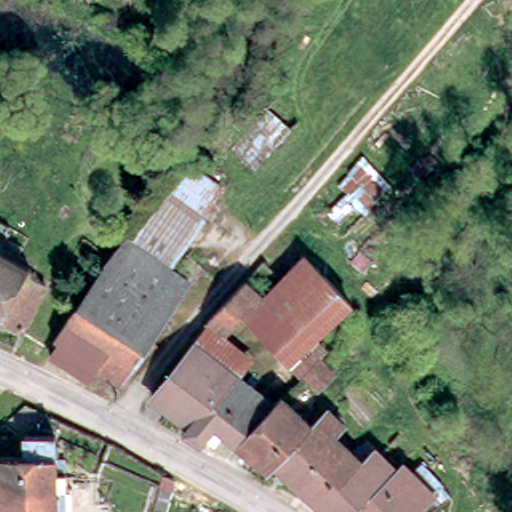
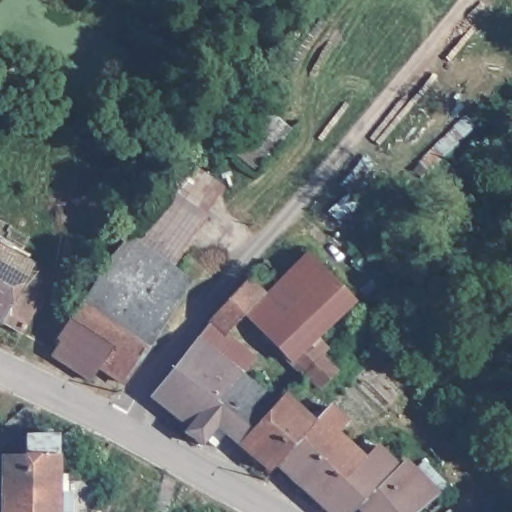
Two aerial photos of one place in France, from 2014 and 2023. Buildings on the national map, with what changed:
unchanged [(189,162),(222,185),(203,212),(170,189),(189,162)]
unchanged [(170,263),(136,240),(170,189),(203,212),(170,263)]
unchanged [(11,234),(2,251),(30,266),(27,274),(22,287),(5,324),(3,328),(0,326),(0,227),(11,234)]
unchanged [(55,351),(57,348),(75,303),(93,279),(104,264),(115,249),(127,234),(136,240),(170,263),(192,278),(125,379),(102,363),(92,377),(55,351)]
unchanged [(262,338),(242,318),(267,290),(300,259),(320,278),(321,279),(276,324),(262,338)]
unchanged [(22,287),(27,274),(47,285),(25,334),(5,324),(22,287)]
unchanged [(321,279),(330,287),(340,298),(348,306),(340,313),(307,345),(306,346),(303,349),(276,324),(321,279)]
unchanged [(242,318),(225,338),(207,324),(245,281),(256,291),(262,285),(267,290),(242,318)]
unchanged [(245,363),(232,377),(198,345),(207,324),(225,338),(245,363)]
unchanged [(315,390),(301,376),(262,338),(276,324),(303,349),(306,346),(307,345),(319,358),(332,371),(315,390)]
unchanged [(204,439),(198,446),(183,433),(187,428),(152,400),(198,345),(232,377),(268,411),(237,447),(225,436),(213,448),(204,439)]
unchanged [(270,473),(237,447),(268,411),(275,402),(306,430),(275,467),(270,473)]
unchanged [(5,419),(25,403),(45,412),(20,433),(5,419)]
unchanged [(352,512),(324,512),(275,467),(306,430),(320,413),(340,430),(332,439),(358,464),(370,451),(392,472),(356,508),(352,512)]
unchanged [(65,471),(66,488),(56,487),(57,512),(0,512),(0,453),(23,453),(24,434),(54,433),(55,470),(65,471)]
unchanged [(414,512),(360,512),(356,508),(392,472),(400,465),(431,497),(427,502),(414,512)]

